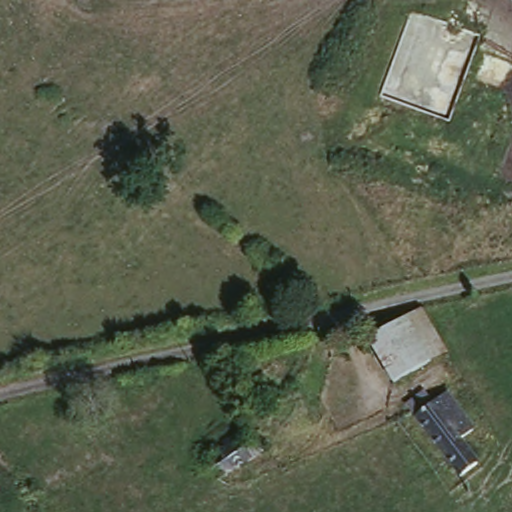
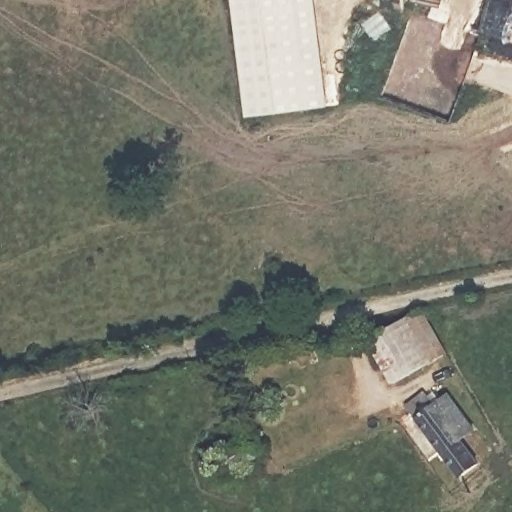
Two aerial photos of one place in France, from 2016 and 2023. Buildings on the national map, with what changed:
new [(327,107),(245,120),(232,0),(313,0),(327,107)]
unchanged [(398,330),(413,321),(436,355),(391,387),(364,348),(394,326),(398,330)]
unchanged [(429,400),(440,412),(453,400),(480,432),(465,442),(484,466),(468,480),(411,413),(429,400)]
unchanged [(246,428),(267,450),(231,485),(210,464),(246,428)]

